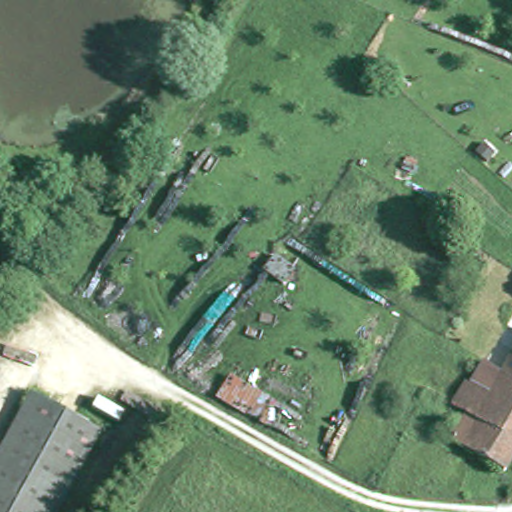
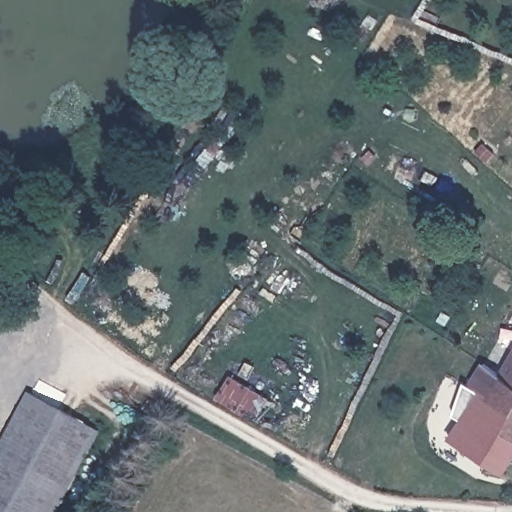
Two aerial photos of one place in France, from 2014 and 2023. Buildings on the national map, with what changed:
unchanged [(509,466),(456,435),(472,410),(458,401),(472,380),(476,382),(490,359),(507,369),(512,372),(512,462),(509,466)]
unchanged [(507,369),(512,360),(512,372),(507,369)]
unchanged [(217,397),(232,374),(277,402),(264,425),(217,397)]
unchanged [(0,467),(40,393),(106,430),(63,512),(0,512),(0,467)]

